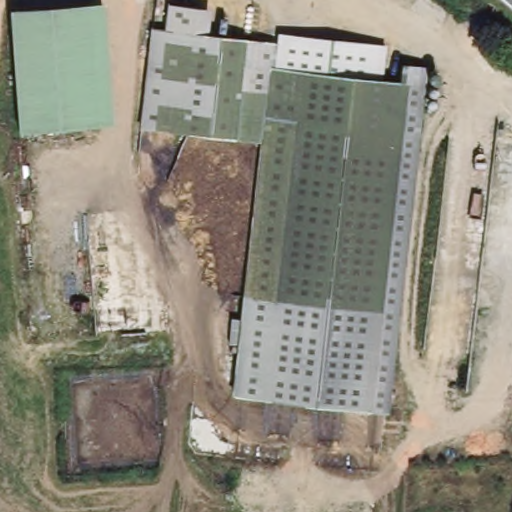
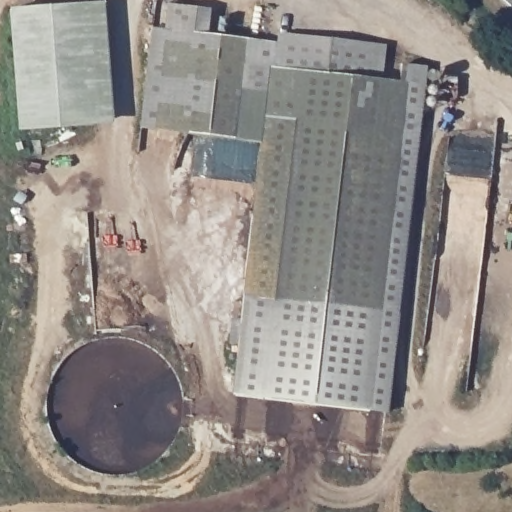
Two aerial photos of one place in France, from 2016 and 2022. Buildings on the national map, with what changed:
unchanged [(79,0),(108,0),(118,125),(21,129),(12,3),(79,0)]
unchanged [(259,142),(139,128),(151,26),(163,28),(167,2),(212,9),(210,32),(278,42),(274,65),(425,84),(389,412),(234,396),(259,142)]

